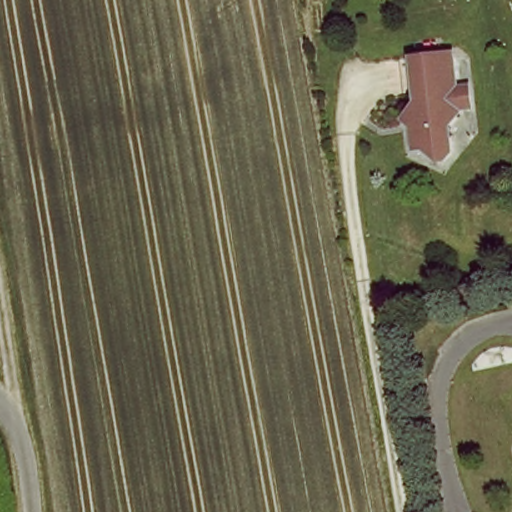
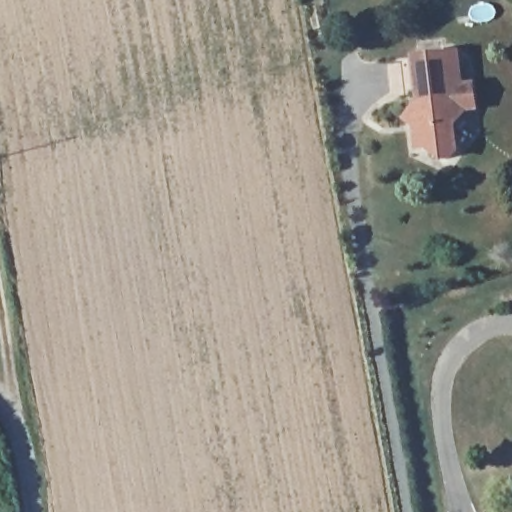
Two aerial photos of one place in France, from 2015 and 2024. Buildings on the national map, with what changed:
unchanged [(459,132),(459,146),(449,157),(434,142),(419,144),(419,121),(411,114),(424,99),(420,53),(461,50),(465,84),(475,84),(479,102),(467,104),(451,127),(459,132)]

